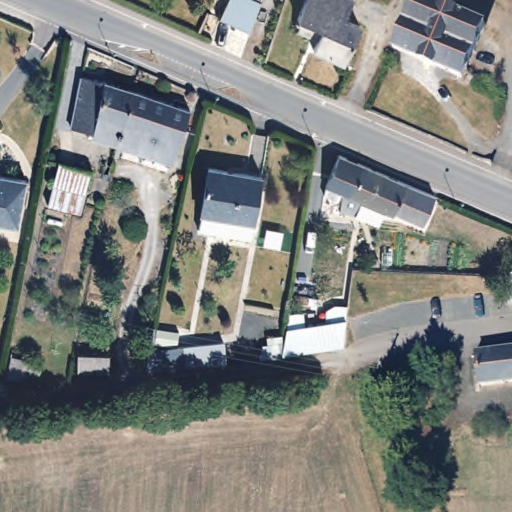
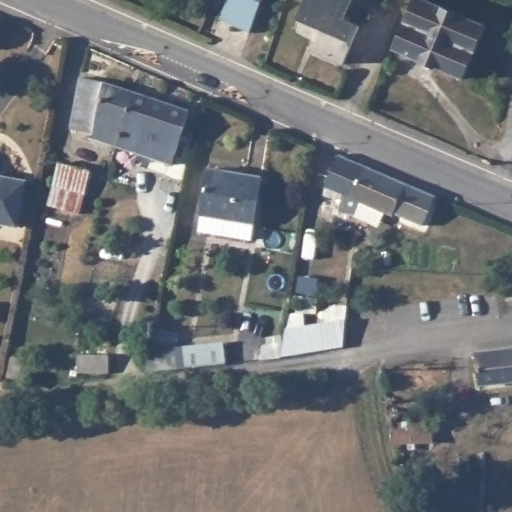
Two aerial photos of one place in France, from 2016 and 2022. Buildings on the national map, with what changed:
unchanged [(258,8),(259,8),(253,29),(231,19),(223,15),(231,0),(262,0),(258,8)]
unchanged [(349,3),(340,24),(355,31),(339,69),(308,56),(317,35),(293,25),(304,0),(343,0),(349,3)]
unchanged [(482,24),(458,79),(389,49),(411,0),(424,0),(482,24)]
unchanged [(89,141),(90,132),(67,126),(77,76),(88,78),(130,91),(117,149),(89,141)]
unchanged [(184,109),(166,166),(117,149),(130,91),(184,109)]
unchanged [(420,225),(392,213),(390,217),(356,202),(349,220),(335,216),(339,195),(323,188),(337,155),(359,165),(432,197),(420,225)]
unchanged [(88,170),(84,195),(82,212),(48,207),(54,165),(88,170)]
unchanged [(192,229),(195,212),(201,170),(255,179),(247,222),(244,238),(192,229)]
unchanged [(23,180),(19,225),(0,224),(0,178),(23,180)]
unchanged [(508,278),(512,279),(512,302),(506,302),(508,278)]
unchanged [(336,323),(337,351),(276,359),(281,330),(336,323)]
unchanged [(216,341),(219,362),(179,366),(143,372),(147,350),(216,341)]
unchanged [(475,353),(512,350),(512,381),(478,384),(475,353)]
unchanged [(426,418),(431,418),(431,439),(428,440),(390,441),(389,419),(426,418)]

